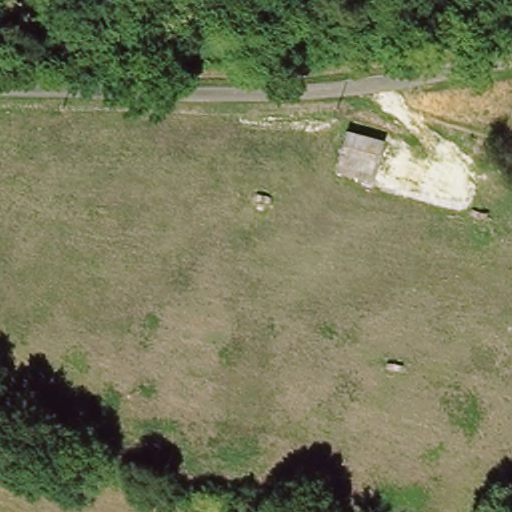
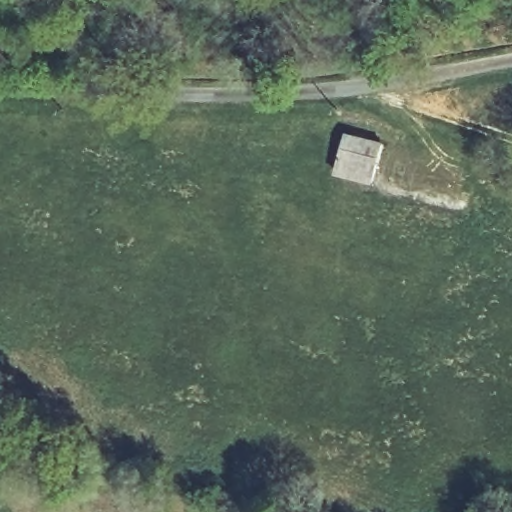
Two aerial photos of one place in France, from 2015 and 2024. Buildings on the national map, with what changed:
unchanged [(384,143),(375,178),(339,170),(350,133),(384,143)]

